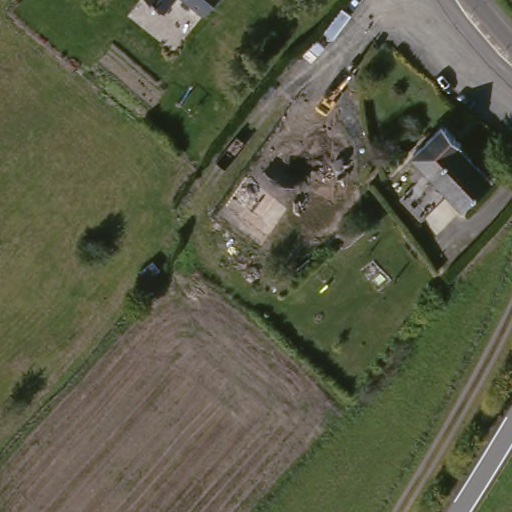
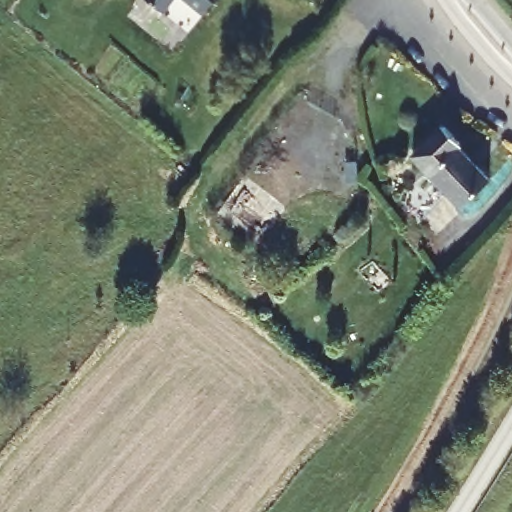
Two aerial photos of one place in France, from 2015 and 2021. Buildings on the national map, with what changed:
unchanged [(165,0),(173,0),(170,4),(165,0)]
unchanged [(198,0),(214,0),(207,8),(198,0)]
unchanged [(469,200),(459,190),(422,154),(450,124),(467,145),(465,149),(480,164),(493,177),(469,200)]

